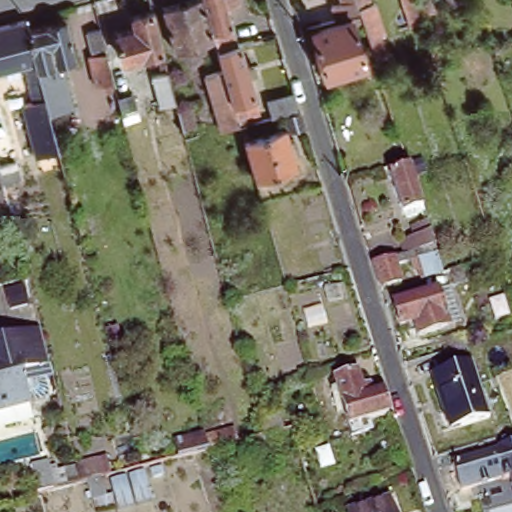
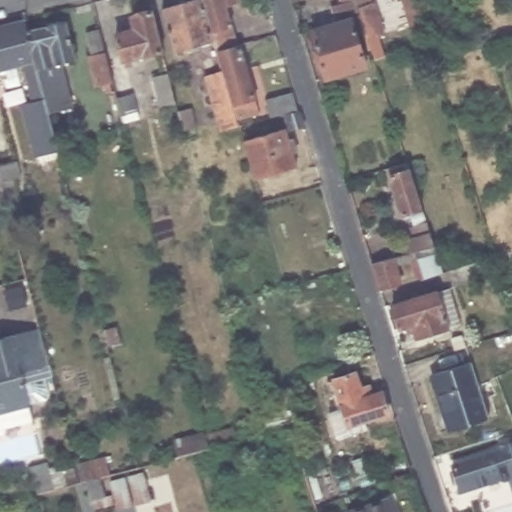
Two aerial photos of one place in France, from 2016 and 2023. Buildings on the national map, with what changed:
unchanged [(175,53),(162,11),(200,0),(202,0),(213,41),(175,53)]
unchanged [(213,41),(202,0),(236,0),(238,6),(226,9),(232,28),(230,29),(235,50),(217,55),(213,41)]
unchanged [(342,0),(357,0),(358,4),(360,12),(347,16),(342,0)]
unchanged [(378,0),(388,29),(396,26),(399,33),(392,35),(397,51),(375,58),(360,12),(358,4),(369,0),(378,0)]
unchanged [(402,36),(395,13),(406,10),(403,0),(414,0),(424,29),(402,36)]
unchanged [(458,8),(455,0),(474,0),(475,2),(458,8)]
unchanged [(122,61),(115,34),(134,29),(131,19),(152,14),(154,14),(163,51),(161,51),(122,61)]
unchanged [(35,61),(0,69),(0,27),(25,20),(28,31),(35,61)]
unchanged [(370,68),(327,81),(311,34),(354,20),(370,68)]
unchanged [(66,23),(75,60),(60,63),(71,108),(48,114),(35,61),(28,31),(66,23)]
unchanged [(106,93),(105,85),(96,88),(88,56),(92,56),(86,33),(100,30),(115,91),(106,93)]
unchanged [(246,74),(254,71),(256,80),(248,82),(258,114),(242,118),(236,120),(223,74),(217,55),(235,50),(239,49),(246,74)]
unchanged [(220,134),(205,79),(223,74),(236,120),(236,121),(243,120),(245,126),(238,128),(220,134)]
unchanged [(289,131),(285,116),(272,119),(268,105),(295,98),(299,111),(303,128),(289,131)]
unchanged [(189,111),(194,130),(182,133),(177,114),(189,111)]
unchanged [(1,121),(11,118),(20,154),(15,155),(18,166),(12,166),(16,182),(3,185),(0,186),(0,116),(1,121)]
unchanged [(285,130),(296,169),(254,182),(242,141),(285,130)]
unchanged [(425,213),(403,220),(388,173),(409,166),(425,213)]
unchanged [(396,267),(402,285),(381,291),(372,264),(405,253),(400,239),(415,234),(412,225),(428,220),(436,243),(413,250),(417,261),(396,267)]
unchanged [(483,275),(458,283),(453,267),(478,259),(483,275)]
unchanged [(426,292),(433,290),(445,325),(413,335),(409,321),(396,326),(389,304),(410,297),(407,291),(425,285),(426,292)]
unchanged [(449,330),(460,327),(463,339),(453,342),(449,330)]
unchanged [(48,365),(22,372),(31,407),(0,414),(0,338),(40,329),(48,365)]
unchanged [(472,395),(482,424),(446,437),(426,377),(462,365),(472,395)]
unchanged [(360,388),(366,386),(368,394),(379,391),(385,412),(365,418),(368,427),(348,433),(331,377),(355,371),(360,388)]
unchanged [(501,480),(497,471),(456,484),(449,464),(500,448),(500,446),(512,441),(512,495),(506,478),(501,480)]
unchanged [(28,465),(45,461),(55,494),(38,499),(28,465)]
unchanged [(394,512),(365,512),(391,504),(394,512)]

